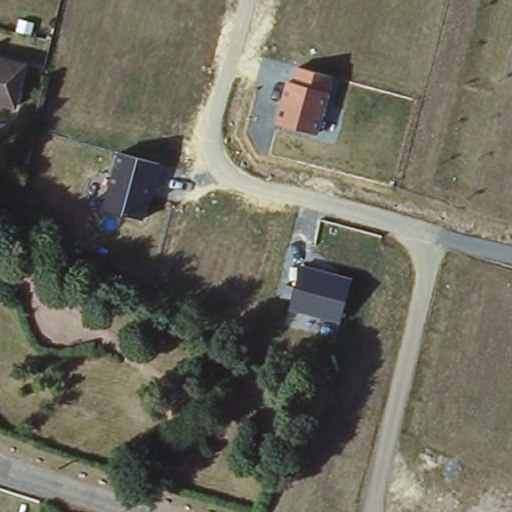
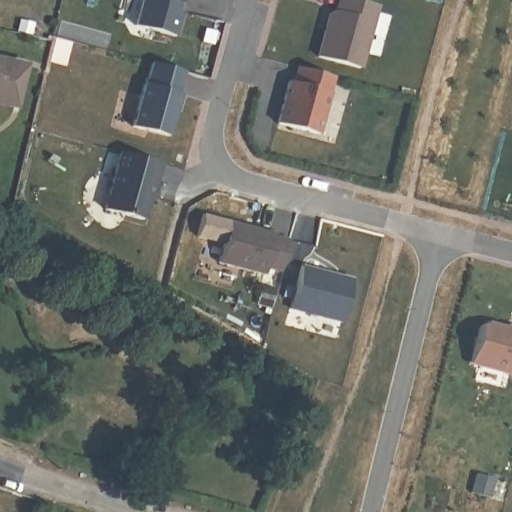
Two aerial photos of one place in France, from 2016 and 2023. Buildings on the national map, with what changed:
new [(170,9),(174,10),(168,32),(128,21),(134,0),(172,0),(170,9)]
new [(357,69),(315,58),(325,15),(330,16),(333,0),(347,0),(372,7),(357,69)]
new [(177,67),(171,89),(172,89),(161,132),(126,122),(137,80),(139,80),(145,59),(177,67)]
unchanged [(11,103),(0,101),(0,61),(20,66),(11,103)]
unchanged [(333,81),(318,138),(273,127),(286,84),(292,85),(295,72),(333,81)]
unchanged [(169,165),(161,192),(152,189),(144,220),(102,210),(118,152),(169,165)]
new [(273,270),(259,266),(257,273),(212,260),(223,218),(269,230),(268,233),(282,237),(273,270)]
unchanged [(355,275),(342,324),(287,310),(298,263),(355,275)]
new [(467,362),(477,325),(482,322),(508,329),(508,326),(512,327),(512,374),(467,362)]

